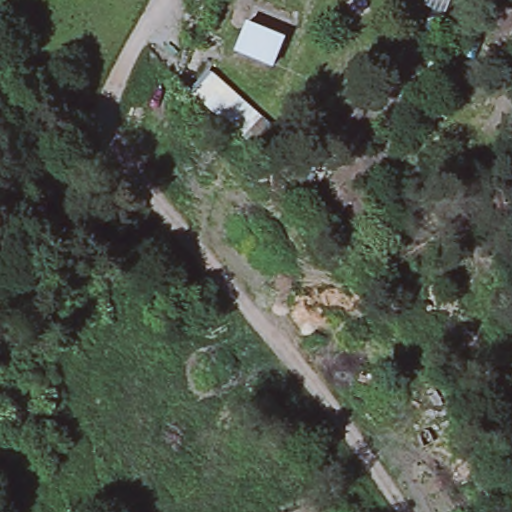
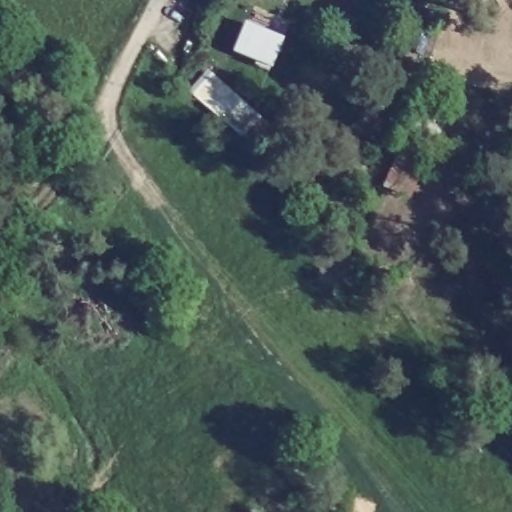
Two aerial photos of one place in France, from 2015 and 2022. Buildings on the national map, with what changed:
unchanged [(277,43),(268,66),(239,53),(248,31),(277,43)]
unchanged [(264,117),(243,141),(191,96),(214,71),(264,117)]

